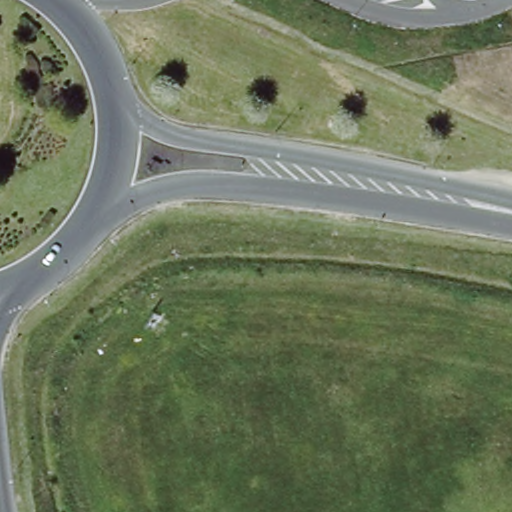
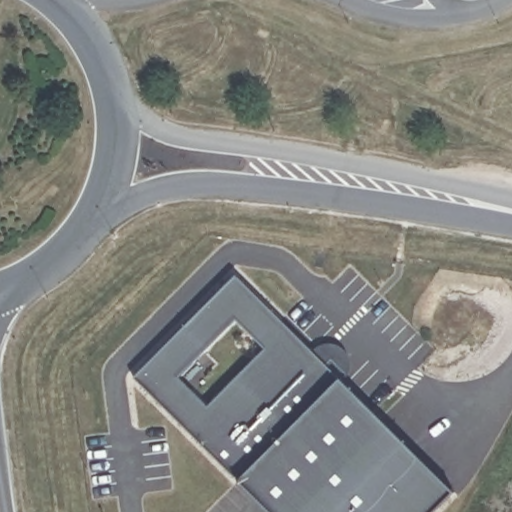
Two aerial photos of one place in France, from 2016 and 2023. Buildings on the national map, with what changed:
new [(236,277),(315,352),(325,344),(336,342),(345,348),(348,354),(350,368),(341,378),(453,492),(434,512),(270,512),(240,482),(135,378),(236,277)]

